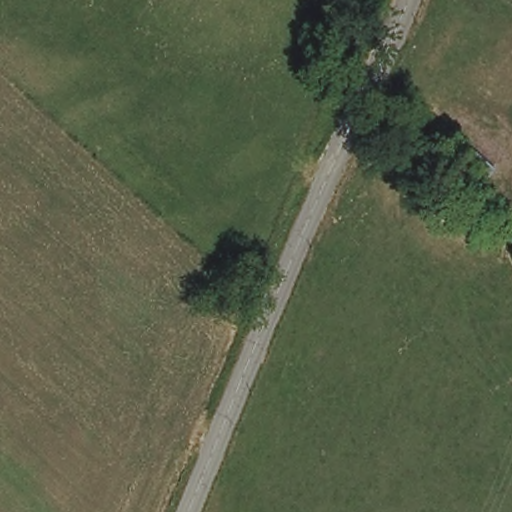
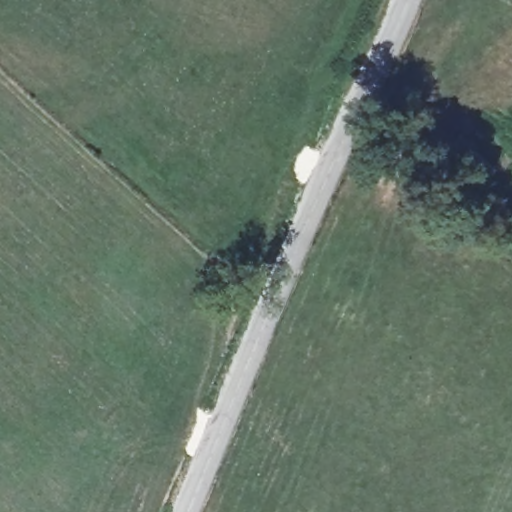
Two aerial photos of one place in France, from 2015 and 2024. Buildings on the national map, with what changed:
unchanged [(456,130),(492,160),(475,182),(440,153),(456,130)]

